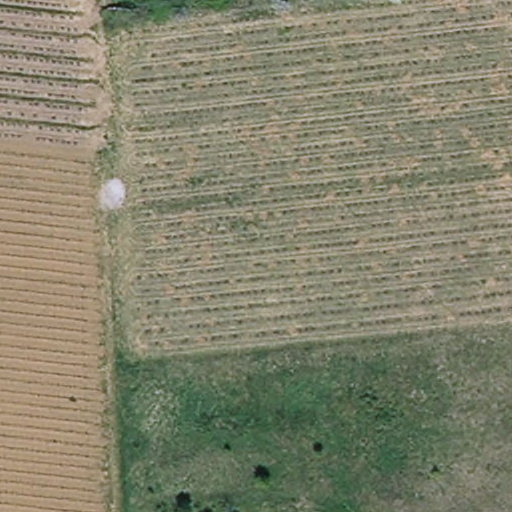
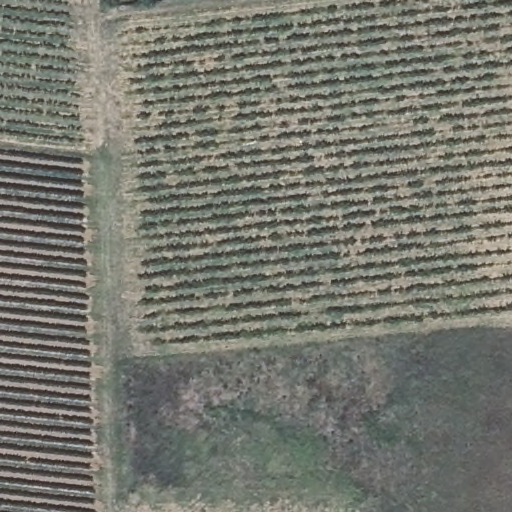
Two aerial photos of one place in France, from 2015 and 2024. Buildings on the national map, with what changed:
[]

